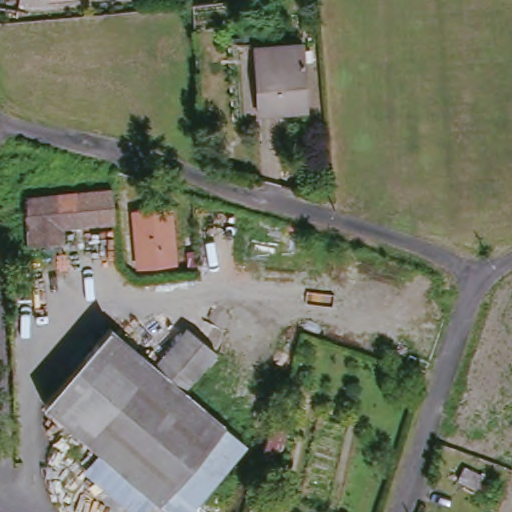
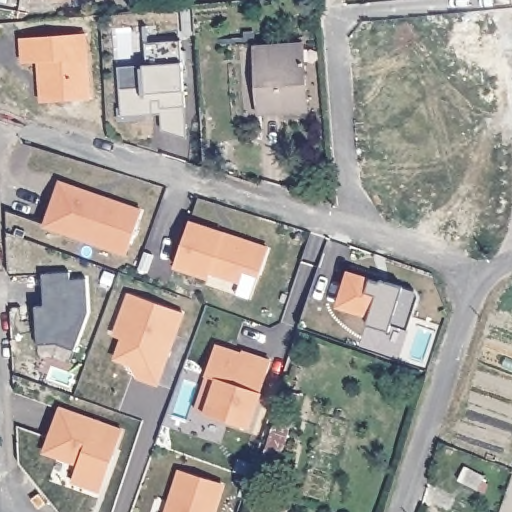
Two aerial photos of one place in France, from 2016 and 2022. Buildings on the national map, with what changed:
new [(38,63),(22,64),(20,40),(83,35),(88,100),(41,104),(38,63)]
new [(120,68),(143,66),(148,65),(146,43),(179,41),(181,64),(183,90),(187,140),(162,130),(162,115),(122,116),(120,68)]
unchanged [(299,45),(302,107),(255,109),(252,47),(299,45)]
new [(59,180),(142,209),(125,256),(42,227),(59,180)]
demolished [(111,192),(112,223),(99,223),(99,219),(77,220),(76,225),(55,225),(56,245),(28,244),(25,243),(24,197),(111,192)]
demolished [(130,211),(167,210),(171,265),(134,267),(130,211)]
new [(267,249),(258,277),(243,273),(239,284),(210,274),(208,280),(173,268),(190,220),(267,249)]
new [(347,270),(370,280),(380,284),(382,281),(402,288),(415,292),(417,298),(407,329),(390,326),(389,330),(367,324),(369,318),(335,307),(347,270)]
new [(70,273),(70,280),(85,280),(89,311),(74,350),(57,343),(39,343),(37,308),(45,307),(43,275),(70,273)]
new [(128,292),(185,313),(158,386),(135,378),(130,365),(115,358),(122,339),(112,336),(128,292)]
demolished [(150,499),(100,455),(42,404),(107,329),(152,370),(185,332),(212,354),(178,393),(240,444),(217,469),(197,453),(152,501),(150,499)]
new [(204,414),(194,411),(206,374),(215,344),(240,354),(242,350),(270,360),(261,393),(248,429),(204,414)]
new [(60,406),(123,429),(100,493),(70,482),(77,466),(43,452),(60,406)]
new [(225,483),(216,512),(164,512),(178,469),(225,483)]
unchanged [(485,481),(480,495),(457,486),(463,471),(485,481)]

